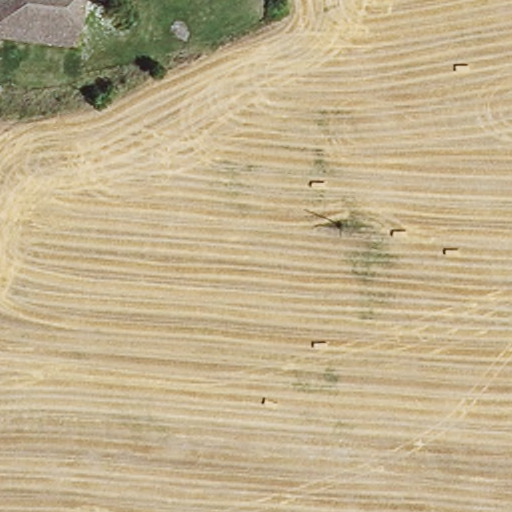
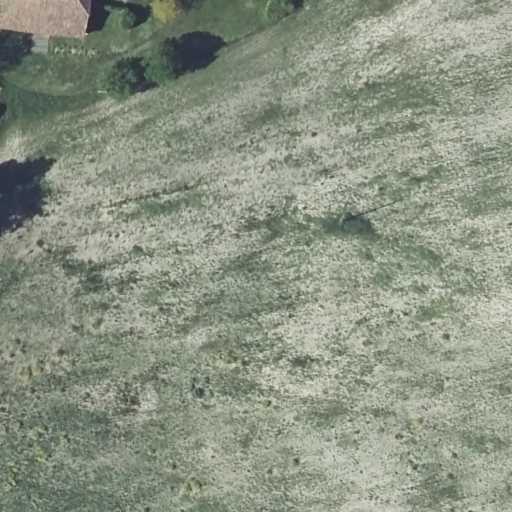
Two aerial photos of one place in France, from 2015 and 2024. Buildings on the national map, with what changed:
unchanged [(0,0),(40,0),(35,32),(0,27),(0,0)]
unchanged [(109,16),(85,12),(81,38),(35,32),(40,0),(111,0),(109,16)]

